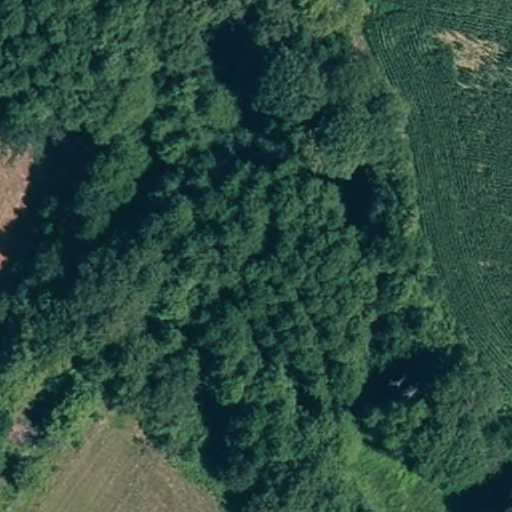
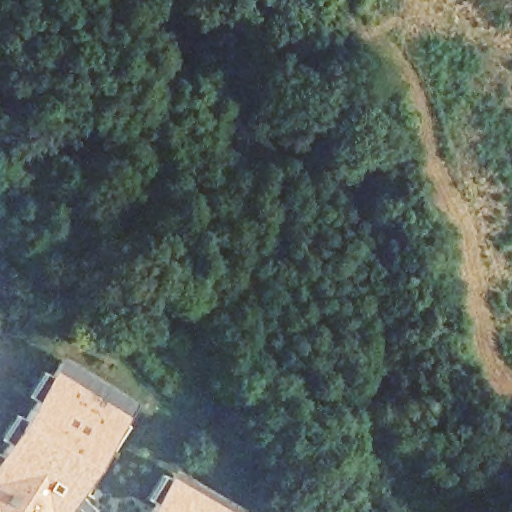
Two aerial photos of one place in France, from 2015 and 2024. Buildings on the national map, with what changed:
new [(0,467),(69,361),(136,405),(66,512),(0,512),(0,467)]
new [(34,396),(50,372),(59,377),(42,402),(34,396)]
new [(22,414),(31,420),(15,445),(6,439),(22,414)]
new [(125,421),(134,427),(118,451),(110,446),(125,421)]
new [(0,467),(0,452),(7,457),(0,467)]
new [(98,463),(106,469),(85,502),(76,497),(98,463)]
new [(143,508),(157,483),(166,488),(152,512),(149,512),(143,508)]
new [(169,483),(220,512),(152,512),(169,483)]

